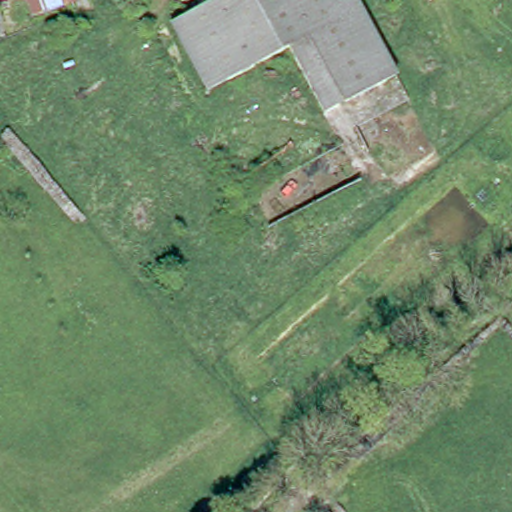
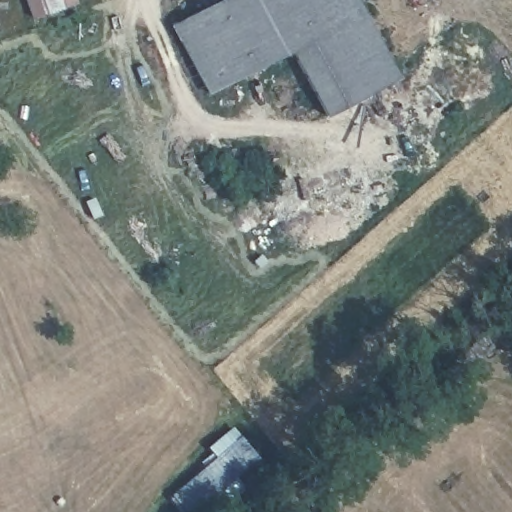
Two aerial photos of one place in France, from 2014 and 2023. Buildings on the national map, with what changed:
unchanged [(44,16),(43,14),(32,18),(26,0),(74,0),(75,4),(44,16)]
unchanged [(324,116),(289,50),(208,93),(172,26),(222,0),(355,0),(397,77),(324,116)]

